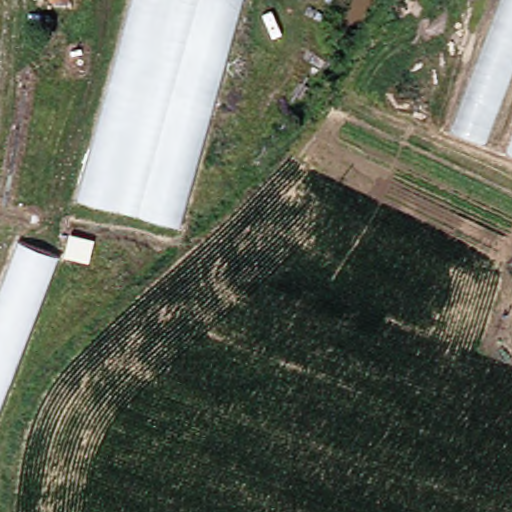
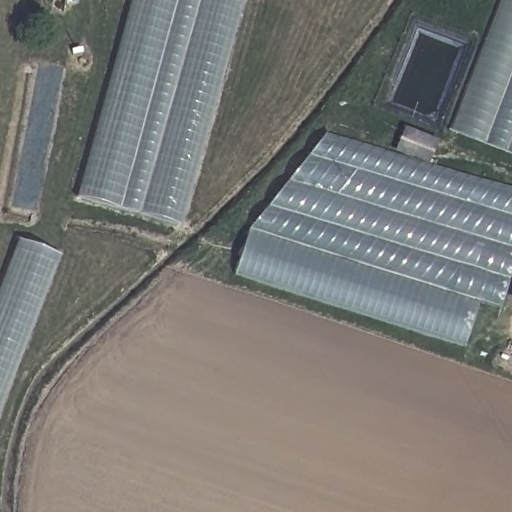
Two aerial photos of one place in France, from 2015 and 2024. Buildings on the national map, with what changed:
unchanged [(61,4),(61,0),(75,0),(75,5),(61,4)]
unchanged [(64,195),(117,0),(228,0),(171,222),(64,195)]
unchanged [(438,131),(490,0),(512,0),(512,44),(474,142),(438,131)]
unchanged [(496,147),(512,107),(512,152),(496,147)]
new [(393,152),(404,126),(438,140),(428,166),(393,152)]
new [(234,277),(252,227),(329,132),(393,152),(428,166),(512,187),(512,273),(501,307),(480,301),(465,348),(234,277)]
unchanged [(46,252),(0,370),(0,253),(5,239),(46,252)]
unchanged [(504,302),(512,281),(512,304),(504,302)]

